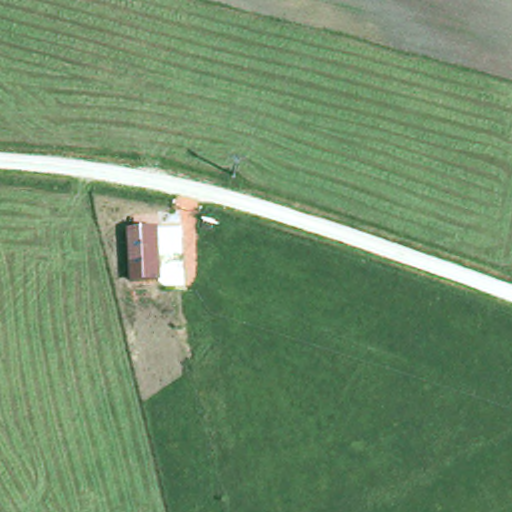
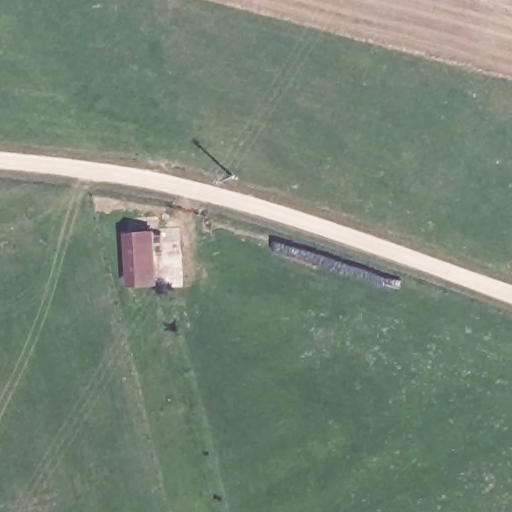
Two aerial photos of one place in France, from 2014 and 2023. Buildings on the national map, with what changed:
unchanged [(157,229),(161,286),(129,287),(126,231),(157,229)]

